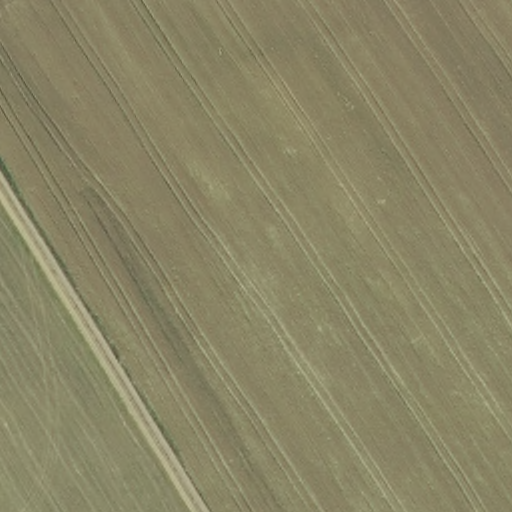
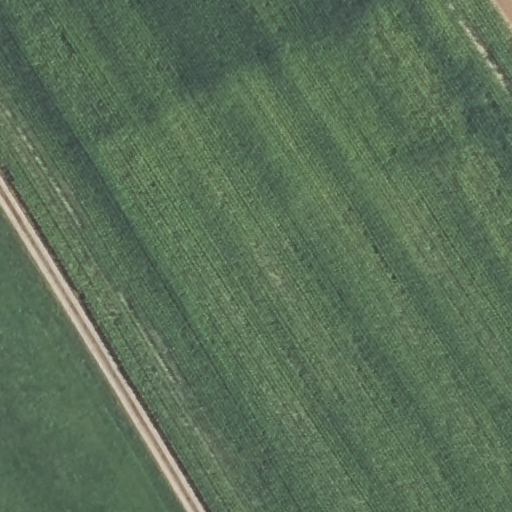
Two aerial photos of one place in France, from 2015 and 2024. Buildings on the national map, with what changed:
[]

